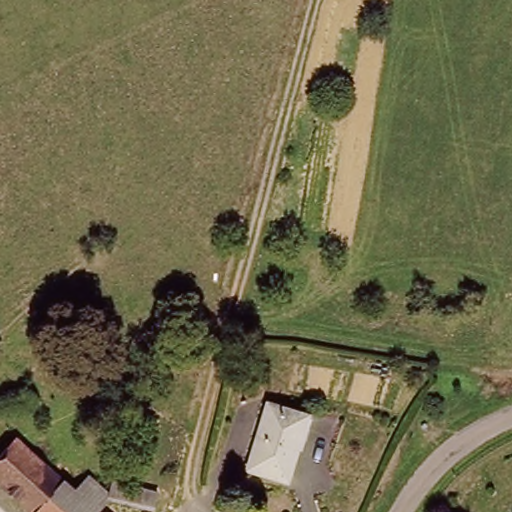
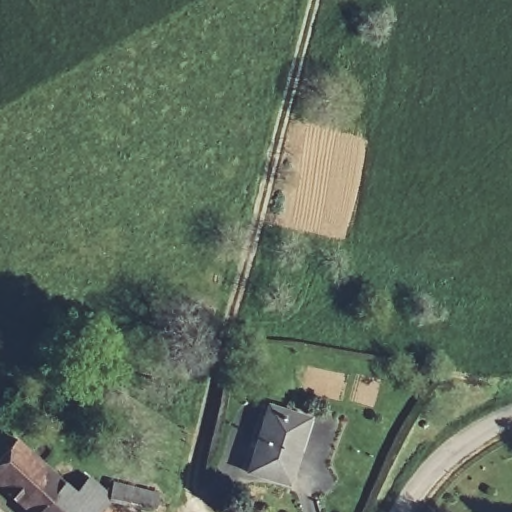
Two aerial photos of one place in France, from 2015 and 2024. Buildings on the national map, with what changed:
unchanged [(21,414),(5,402),(16,387),(33,399),(21,414)]
unchanged [(303,414),(284,478),(248,467),(268,403),(303,414)]
unchanged [(15,438),(73,492),(88,477),(107,491),(110,481),(156,492),(151,508),(129,501),(120,512),(31,512),(0,485),(0,455),(15,438)]

